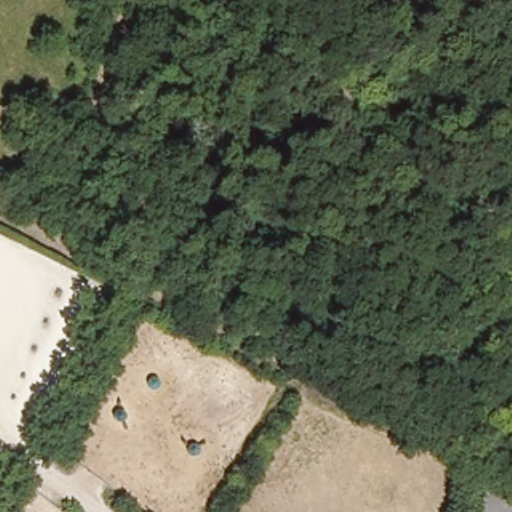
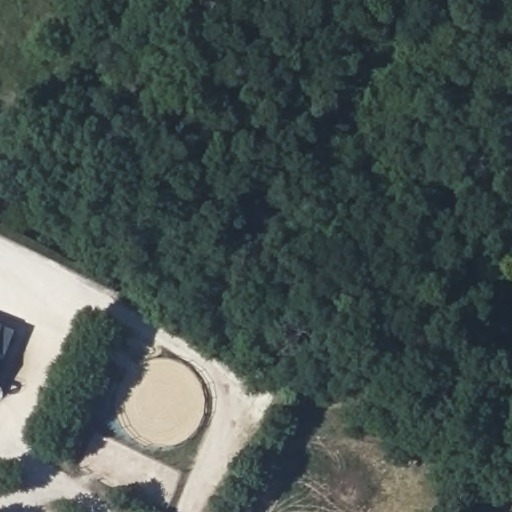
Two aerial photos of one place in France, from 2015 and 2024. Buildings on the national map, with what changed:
new [(15,331),(4,360),(1,359),(0,362),(0,325),(2,326),(15,331)]
unchanged [(512,484),(512,512),(475,512),(492,475),(512,484)]

